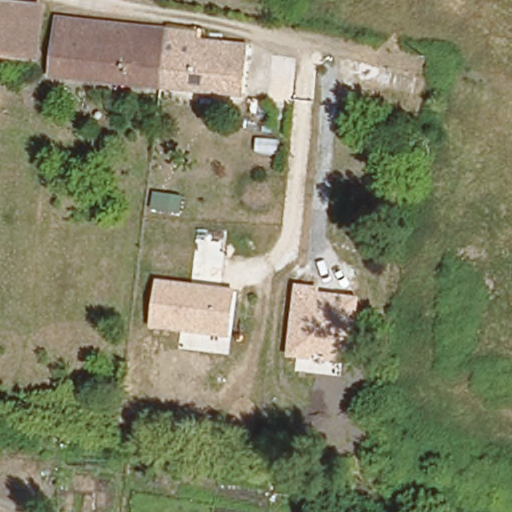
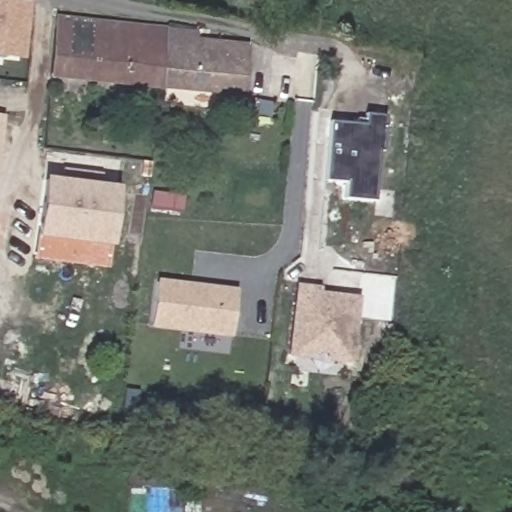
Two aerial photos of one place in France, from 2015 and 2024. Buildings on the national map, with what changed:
unchanged [(37,10),(31,54),(0,50),(0,5),(37,10)]
unchanged [(151,80),(52,73),(57,18),(159,24),(151,80)]
unchanged [(194,26),(193,35),(245,40),(241,86),(151,80),(159,24),(194,26)]
demolished [(414,66),(407,97),(331,86),(334,52),(414,66)]
new [(361,125),(363,113),(384,115),(381,153),(377,152),(373,203),(341,199),(343,182),(322,181),(328,122),(361,125)]
new [(4,116),(0,162),(0,115),(4,116)]
new [(33,263),(44,177),(117,187),(109,271),(33,263)]
new [(181,214),(149,210),(151,191),(186,196),(181,214)]
unchanged [(230,338),(148,328),(155,278),(236,288),(230,338)]
unchanged [(351,362),(287,356),(298,283),(322,286),(322,293),(360,297),(351,362)]

